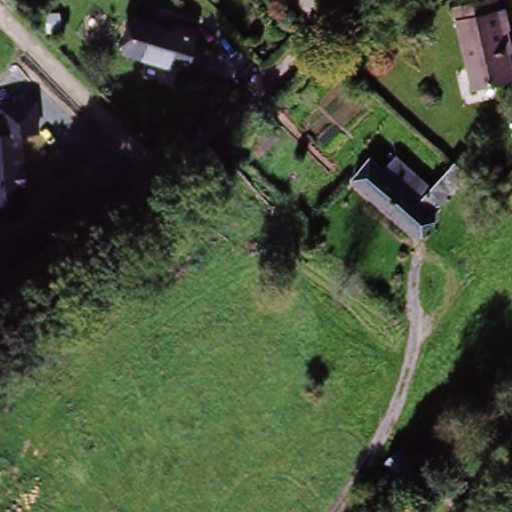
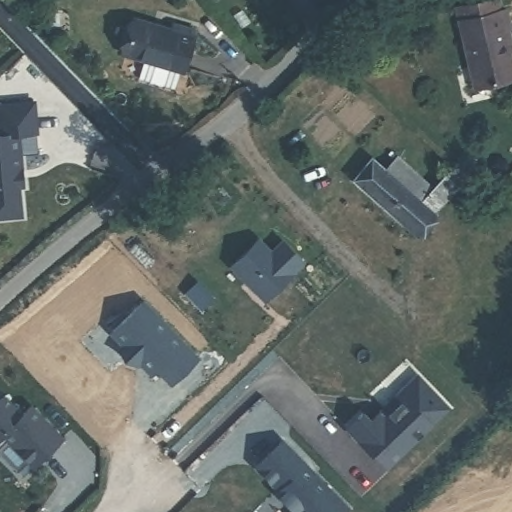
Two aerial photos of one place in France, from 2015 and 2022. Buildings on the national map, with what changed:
unchanged [(504,30),(512,61),(512,78),(476,88),(456,9),(475,3),(489,0),(496,0),(497,9),(505,7),(511,28),(504,30)]
unchanged [(192,34),(181,77),(122,61),(133,25),(170,34),(174,28),(192,34)]
unchanged [(35,135),(22,136),(29,229),(0,229),(0,101),(34,98),(35,135)]
unchanged [(415,233),(360,179),(375,162),(393,177),(400,170),(429,197),(457,166),(469,176),(415,233)]
new [(232,265),(259,239),(272,252),(285,240),(305,261),(293,273),(294,274),(267,301),(232,265)]
new [(141,304),(197,361),(172,386),(157,371),(152,376),(144,368),(147,366),(142,362),(136,368),(123,363),(119,351),(122,347),(110,335),(141,304)]
new [(371,453),(347,429),(363,414),(371,422),(419,375),(440,397),(450,407),(442,414),(389,467),(373,451),(371,453)]
new [(33,471),(28,465),(17,476),(0,459),(0,404),(3,401),(22,420),(30,411),(62,442),(33,471)]
demolished [(53,491),(28,512),(26,512),(0,487),(0,442),(4,438),(53,491)]
new [(277,496),(280,493),(257,469),(283,443),(307,468),(305,470),(314,478),(315,476),(349,510),(347,512),(293,512),(277,496)]
demolished [(397,454),(419,476),(405,486),(385,465),(397,454)]

